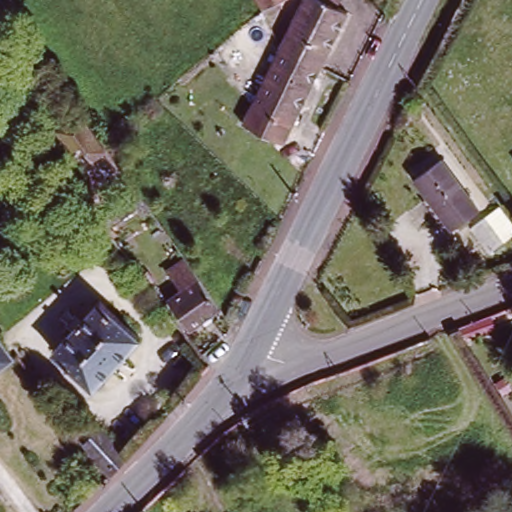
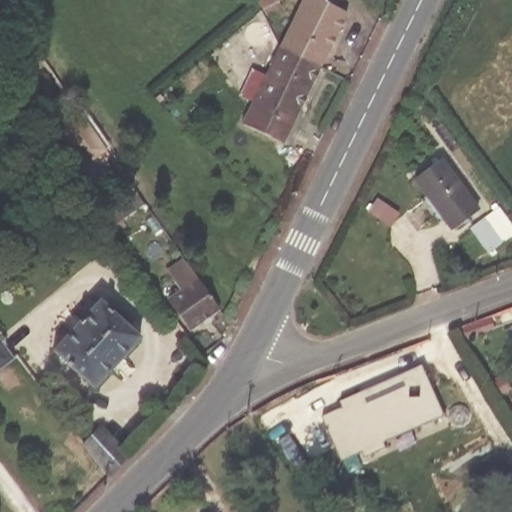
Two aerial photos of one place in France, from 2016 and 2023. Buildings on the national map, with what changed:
unchanged [(343,5),(353,9),(324,65),(290,44),(287,39),(309,0),(335,0),(343,5)]
unchanged [(290,44),(324,65),(285,140),(246,119),(287,39),(290,44)]
unchanged [(115,174),(117,172),(105,153),(97,157),(86,142),(76,149),(61,129),(84,112),(106,142),(110,149),(142,193),(147,200),(115,221),(123,235),(118,239),(105,219),(132,199),(115,174)]
unchanged [(444,158),(468,194),(479,210),(452,228),(441,212),(429,196),(415,176),(444,158)]
unchanged [(512,236),(487,255),(468,228),(498,207),(512,224),(512,236)]
unchanged [(165,293),(158,298),(127,252),(133,248),(165,293)]
unchanged [(223,306),(190,329),(170,299),(182,289),(167,267),(185,254),(223,306)]
unchanged [(98,300),(139,337),(94,388),(52,351),(76,325),(98,300)]
unchanged [(17,362),(0,374),(0,340),(17,362)]
new [(322,415),(343,407),(340,401),(422,365),(445,415),(384,442),(387,447),(365,457),(363,452),(341,461),(322,415)]
unchanged [(128,458),(108,479),(80,442),(102,424),(128,458)]

